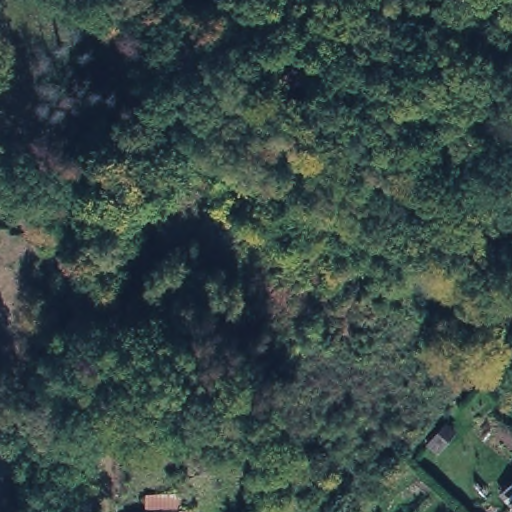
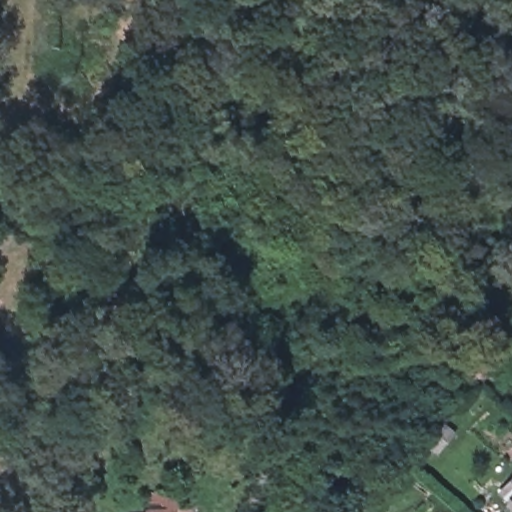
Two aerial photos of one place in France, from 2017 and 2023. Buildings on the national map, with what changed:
unchanged [(512,495),(512,511),(504,503),(512,495)]

